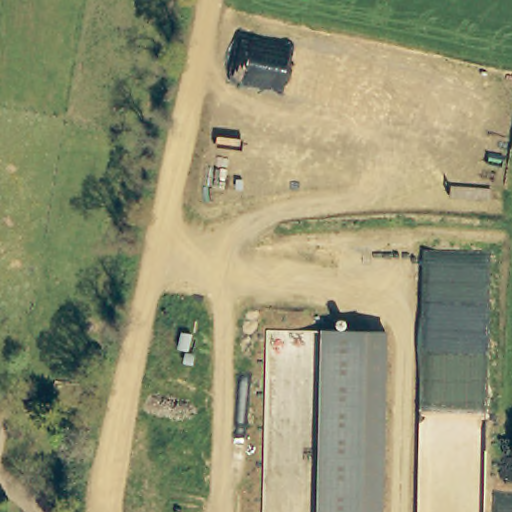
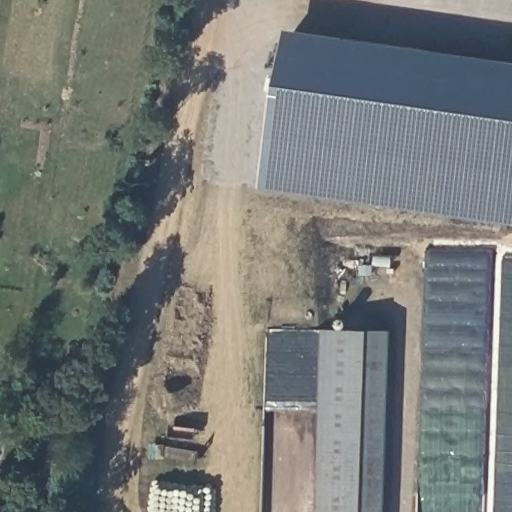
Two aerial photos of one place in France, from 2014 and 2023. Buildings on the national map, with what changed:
new [(512,63),(512,220),(260,186),(285,30),(512,63)]
unchanged [(321,333),(385,333),(379,512),(316,512),(321,333)]

